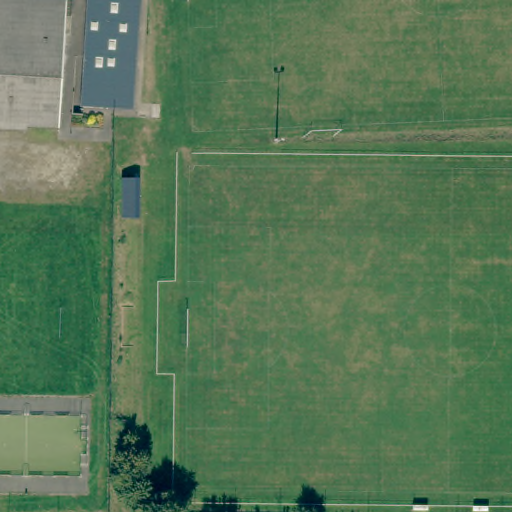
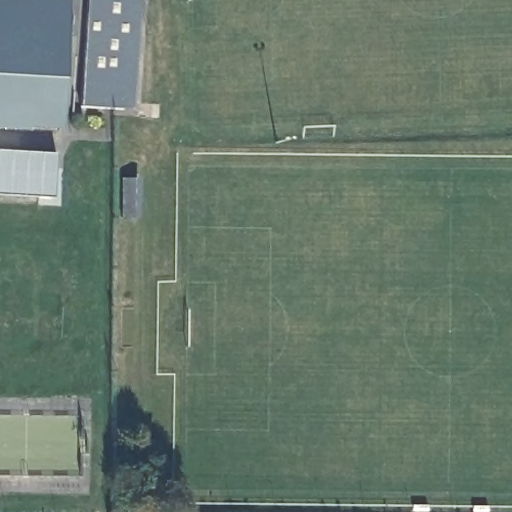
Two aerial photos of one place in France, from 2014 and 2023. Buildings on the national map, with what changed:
unchanged [(59,122),(0,119),(0,0),(66,0),(64,34),(59,122)]
unchanged [(81,102),(87,0),(140,0),(136,76),(134,105),(123,105),(81,102)]
new [(53,199),(0,195),(0,151),(56,155),(53,199)]

